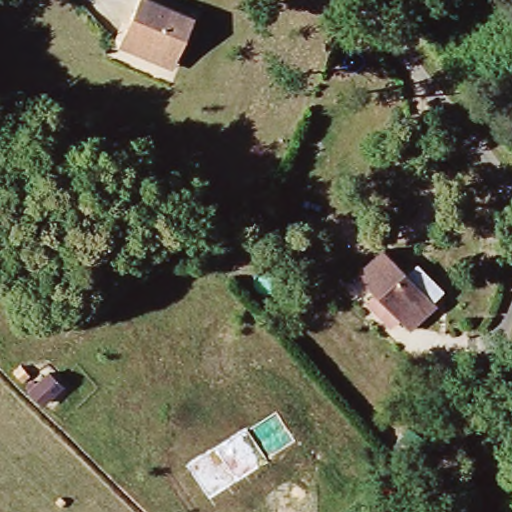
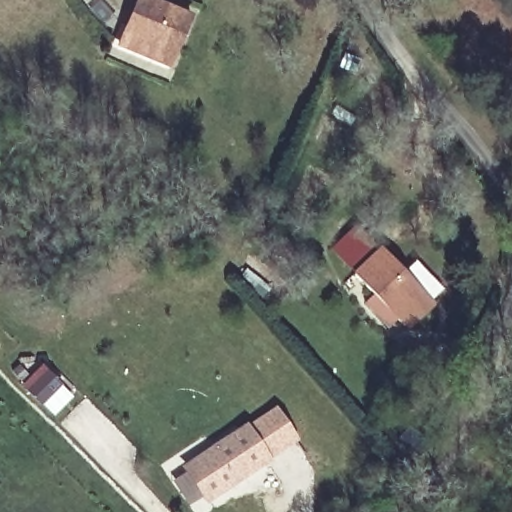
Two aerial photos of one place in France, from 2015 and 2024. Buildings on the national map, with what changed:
unchanged [(120,41),(131,0),(184,14),(173,55),(170,67),(117,53),(120,41)]
unchanged [(383,245),(436,296),(410,324),(356,273),(383,245)]
new [(296,442),(210,500),(186,466),(245,426),(248,430),(275,411),(296,442)]

